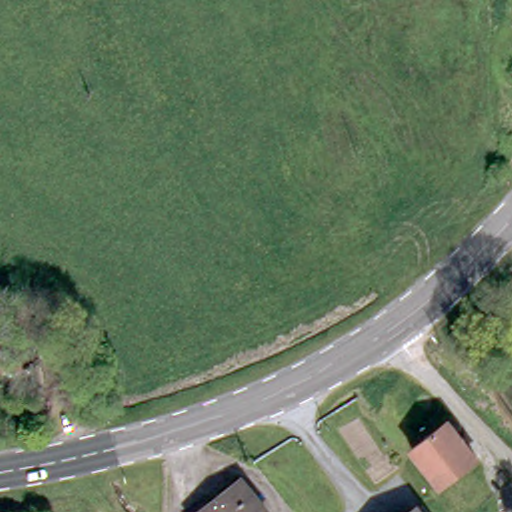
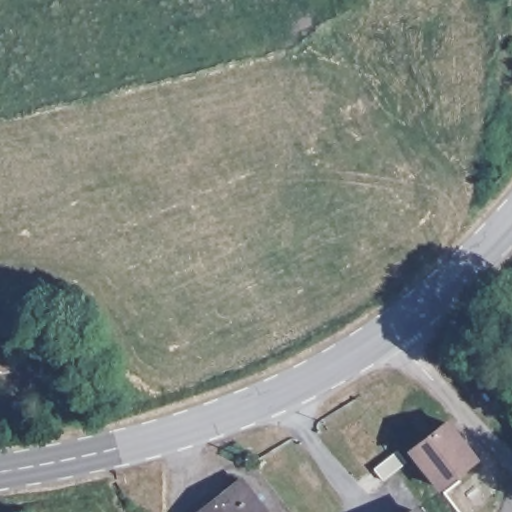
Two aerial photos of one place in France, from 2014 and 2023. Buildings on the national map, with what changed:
unchanged [(410,447),(443,421),(472,461),(440,487),(410,447)]
unchanged [(265,511),(262,512),(189,512),(187,510),(237,473),(265,511)]
unchanged [(409,509),(411,512),(404,512),(409,509)]

